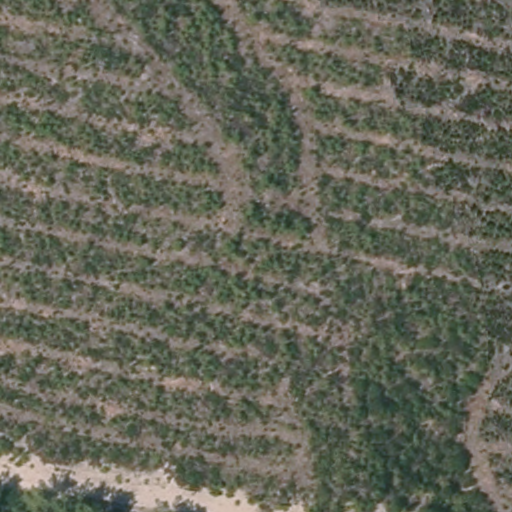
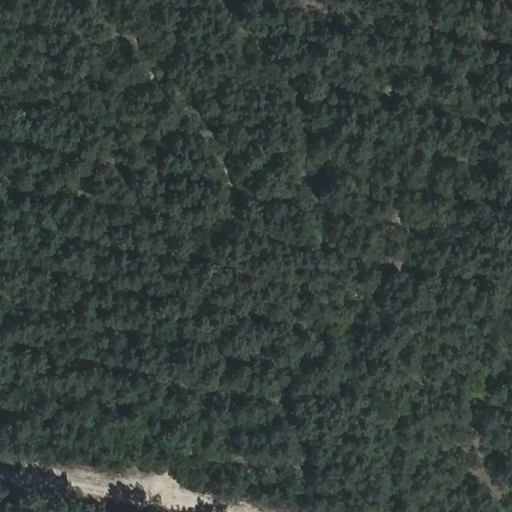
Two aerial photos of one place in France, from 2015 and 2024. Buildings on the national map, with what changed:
[]

